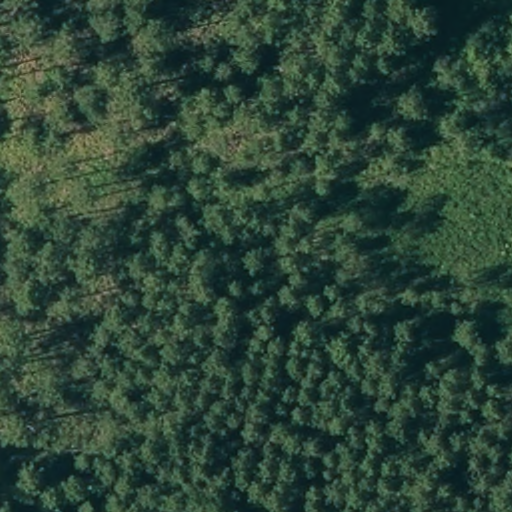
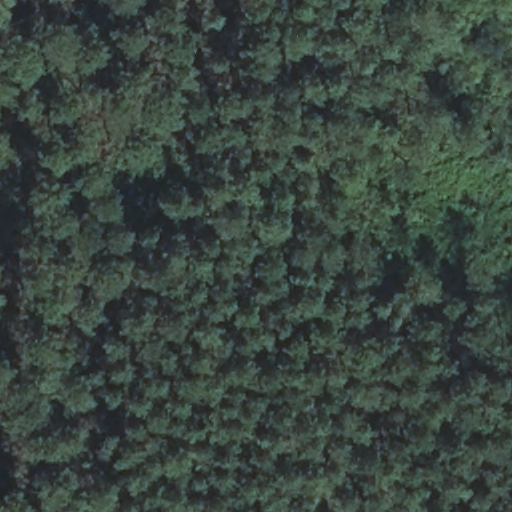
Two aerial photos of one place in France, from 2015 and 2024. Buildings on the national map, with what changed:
[]

